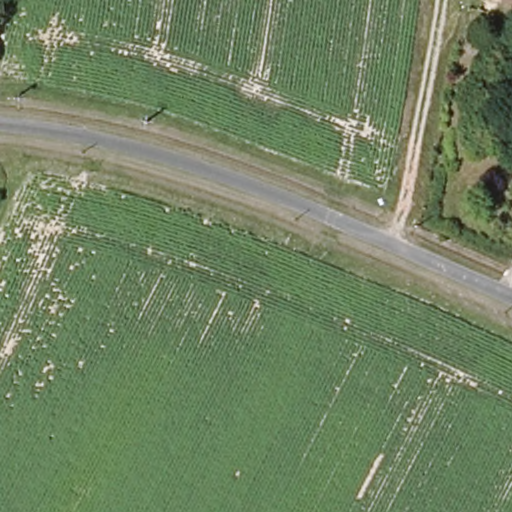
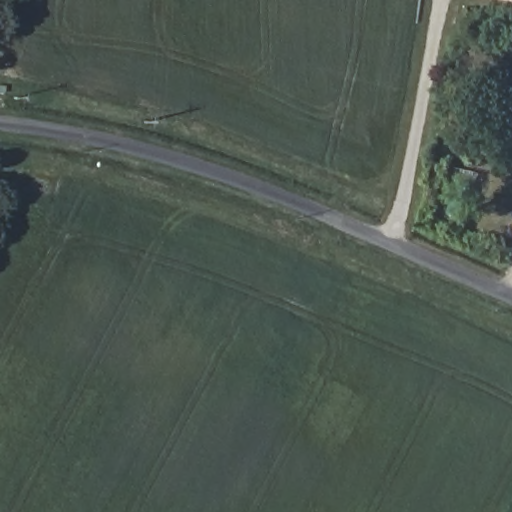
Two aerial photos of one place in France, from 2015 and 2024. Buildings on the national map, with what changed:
unchanged [(512,0),(512,5),(491,0),(512,0)]

